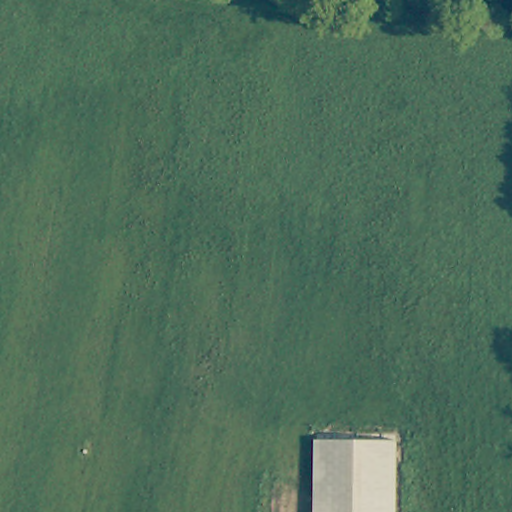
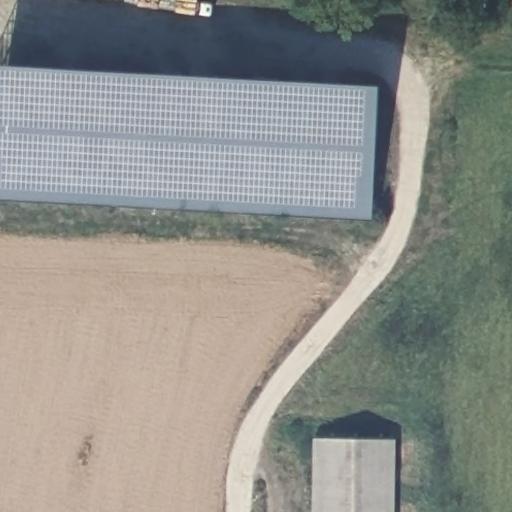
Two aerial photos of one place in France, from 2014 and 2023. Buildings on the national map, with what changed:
new [(0,199),(0,66),(379,87),(371,220),(0,199)]
unchanged [(395,441),(395,512),(314,512),(315,440),(395,441)]

